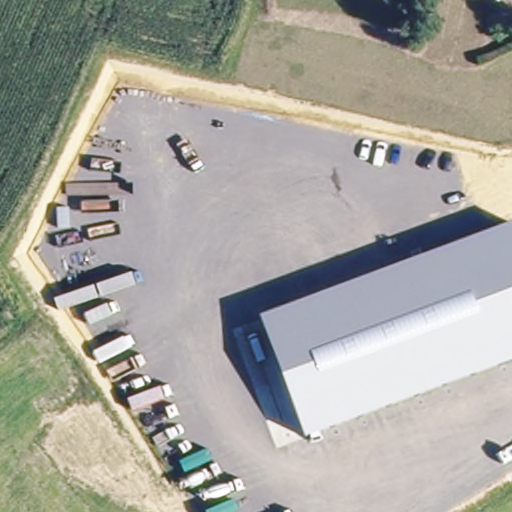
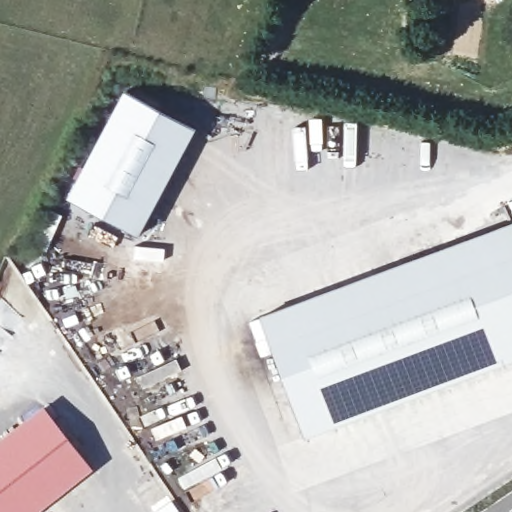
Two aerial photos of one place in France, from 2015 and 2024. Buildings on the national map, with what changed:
new [(67,199),(125,92),(195,130),(140,236),(67,199)]
unchanged [(305,438),(259,315),(512,224),(512,362),(305,438)]
new [(44,407),(93,470),(40,512),(0,512),(0,440),(44,407)]

